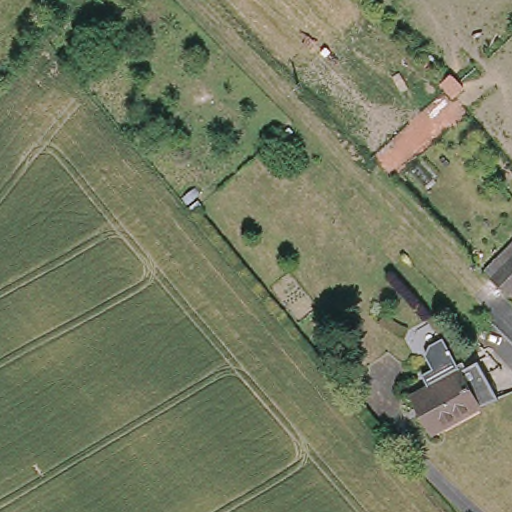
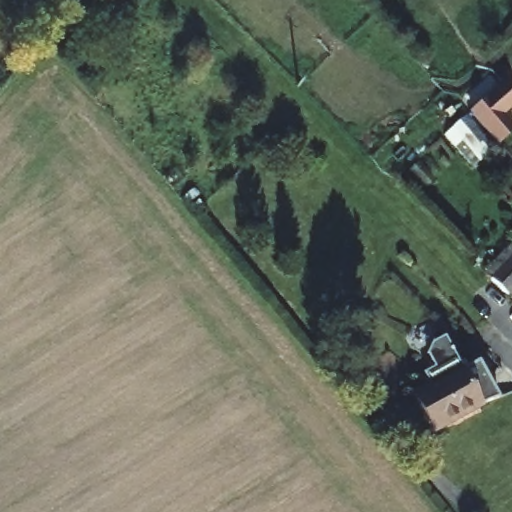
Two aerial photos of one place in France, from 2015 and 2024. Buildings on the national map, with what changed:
new [(512,95),(512,109),(504,116),(512,126),(512,134),(497,146),(469,112),(502,83),(512,95)]
unchanged [(512,242),(512,289),(507,294),(483,271),(512,242)]
unchanged [(435,436),(417,401),(434,392),(426,378),(437,373),(430,360),(435,349),(449,343),(462,367),(469,364),(474,372),(482,367),(501,402),(435,436)]

